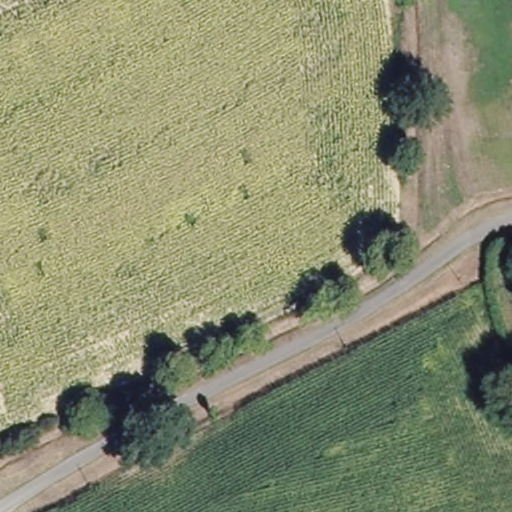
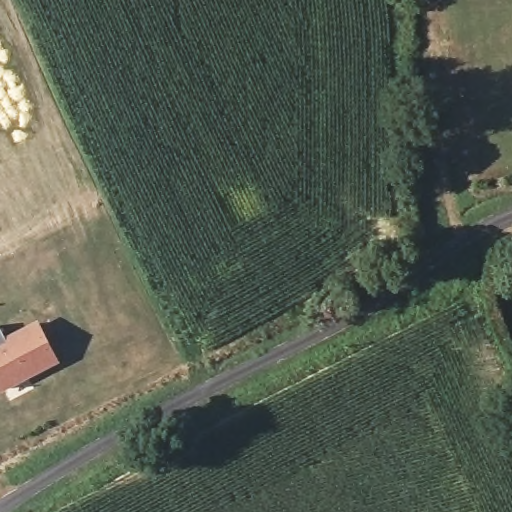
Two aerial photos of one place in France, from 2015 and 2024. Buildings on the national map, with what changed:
new [(55,360),(0,389),(0,329),(5,341),(37,324),(55,360)]

